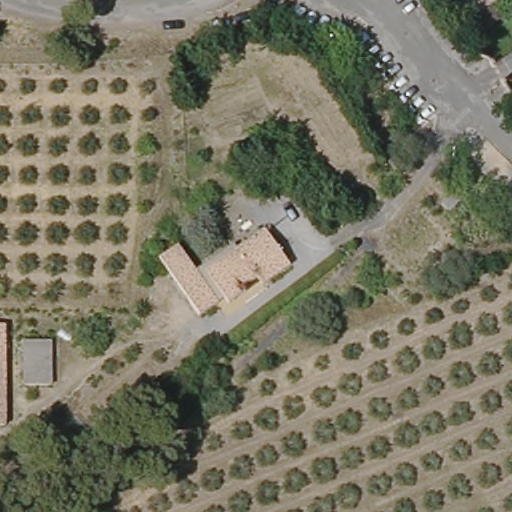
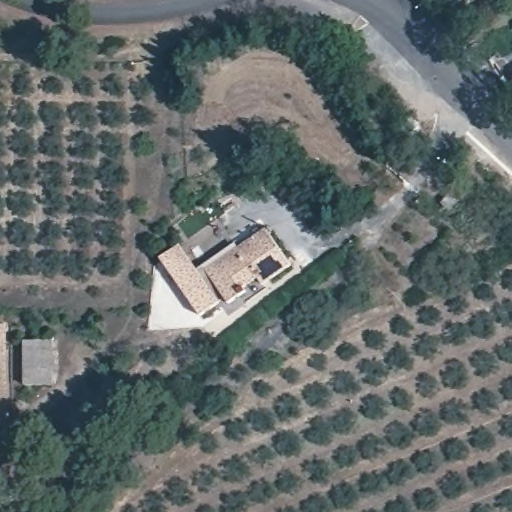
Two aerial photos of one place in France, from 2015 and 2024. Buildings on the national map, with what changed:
unchanged [(183,243),(205,272),(260,229),(285,263),(266,278),(261,274),(249,284),(253,290),(235,303),(230,298),(207,317),(167,264),(162,258),(167,255),(183,243)]
unchanged [(15,335),(12,429),(0,428),(0,334),(15,335)]
unchanged [(52,341),(51,386),(22,385),(24,341),(52,341)]

